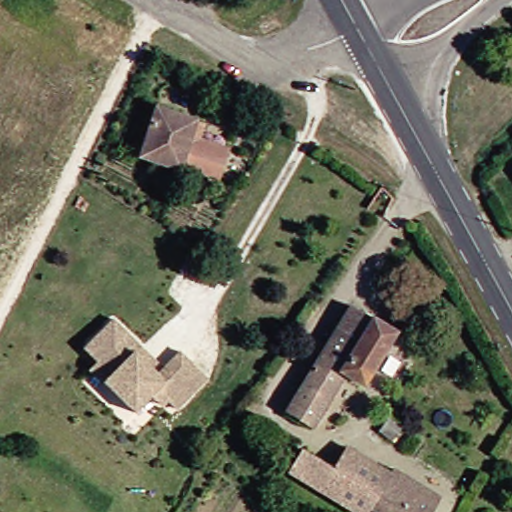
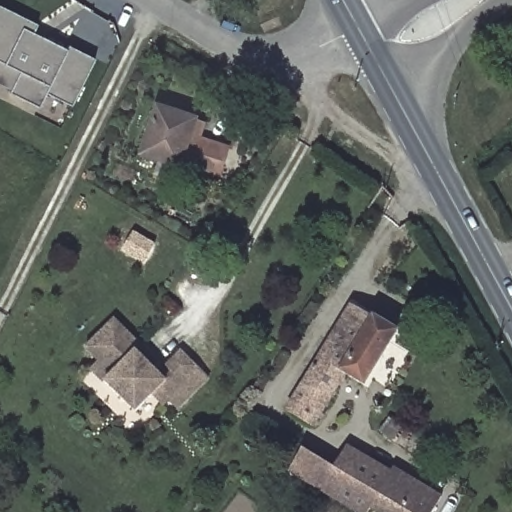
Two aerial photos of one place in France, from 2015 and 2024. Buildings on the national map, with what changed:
new [(31,33),(68,49),(69,46),(95,59),(72,104),(47,92),(39,105),(10,91),(12,89),(0,83),(0,5),(35,24),(31,33)]
unchanged [(277,19),(279,25),(264,33),(260,26),(277,19)]
unchanged [(135,156),(151,109),(189,120),(198,123),(193,139),(219,148),(209,177),(174,165),(174,169),(135,156)]
unchanged [(508,169),(512,166),(512,174),(508,169)]
unchanged [(344,305),(391,334),(359,387),(339,375),(307,428),(279,412),(344,305)]
unchanged [(145,389),(128,407),(96,376),(84,363),(93,357),(78,341),(108,313),(134,341),(150,357),(145,363),(151,369),(163,358),(174,347),(202,374),(195,381),(170,404),(161,395),(156,401),(145,389)]
unchanged [(387,418),(401,426),(393,439),(379,431),(387,418)]
unchanged [(362,512),(347,512),(282,473),(296,449),(328,469),(340,449),(384,476),(388,470),(436,498),(427,512),(366,512),(363,510),(362,512)]

